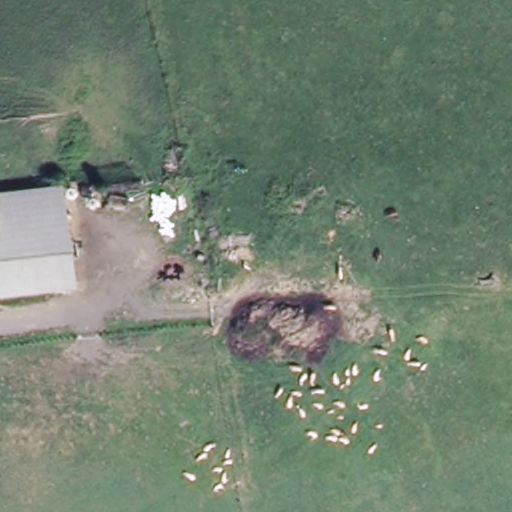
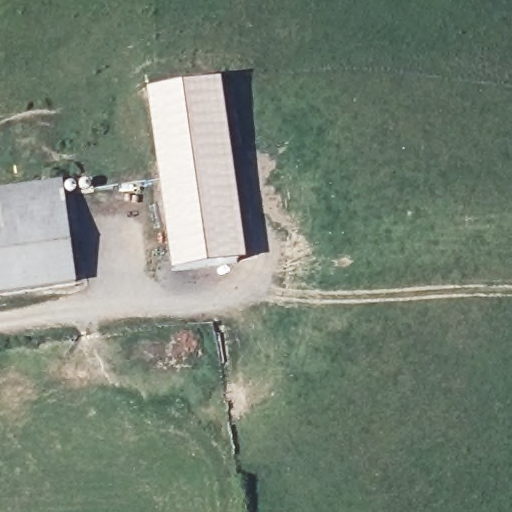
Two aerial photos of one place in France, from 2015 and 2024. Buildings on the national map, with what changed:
new [(223,80),(246,259),(239,260),(216,81),(223,80)]
new [(216,81),(239,260),(174,269),(151,89),(216,81)]
unchanged [(69,235),(75,279),(0,287),(0,182),(61,176),(69,235)]

